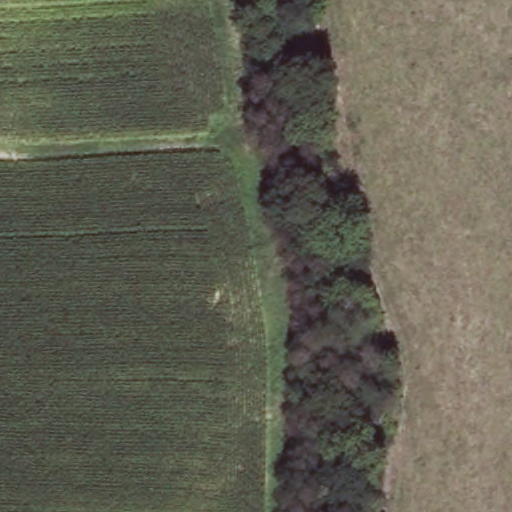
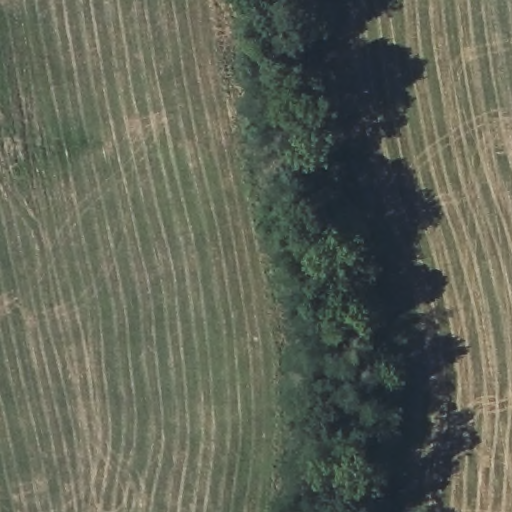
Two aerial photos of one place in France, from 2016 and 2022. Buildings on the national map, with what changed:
[]

